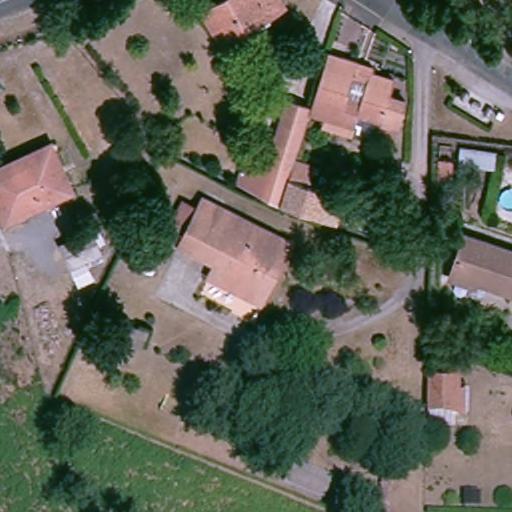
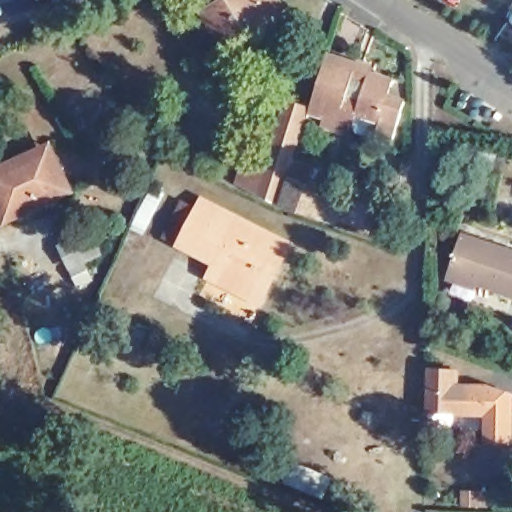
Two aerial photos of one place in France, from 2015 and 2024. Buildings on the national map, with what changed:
unchanged [(264,17),(217,45),(198,12),(219,0),(275,0),(277,4),(262,13),(264,17)]
unchanged [(363,63),(361,68),(399,80),(395,95),(412,101),(399,142),(382,137),(387,123),(348,111),(344,122),(314,113),(294,177),(334,189),(323,219),(285,205),(278,202),(248,186),(255,164),(272,169),(293,103),(315,110),(333,54),(363,63)]
unchanged [(491,166),(473,165),(471,202),(448,201),(449,145),(492,148),(491,166)]
unchanged [(0,175),(53,150),(72,191),(11,220),(0,197),(0,175)]
unchanged [(214,273),(221,259),(184,241),(208,194),(296,239),(273,285),(265,299),(214,273)]
unchanged [(72,267),(62,247),(90,233),(99,253),(72,267)]
unchanged [(459,235),(512,253),(512,297),(446,274),(459,235)]
unchanged [(147,334),(141,347),(114,335),(119,322),(147,334)]
unchanged [(459,371),(457,413),(427,411),(428,370),(459,371)]
new [(489,384),(512,392),(512,444),(484,443),(484,416),(457,417),(457,413),(458,384),(489,384)]
unchanged [(330,480),(324,496),(288,481),(295,464),(330,480)]

